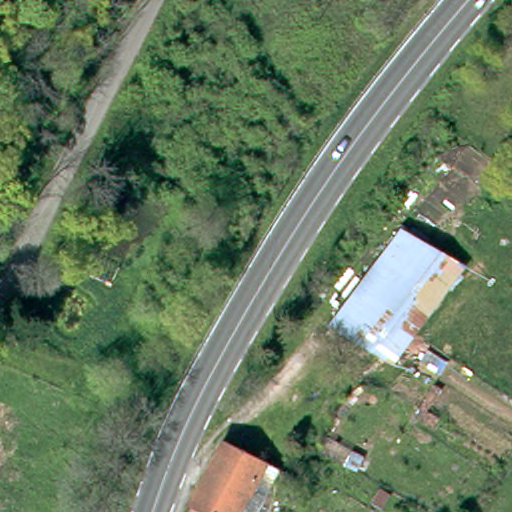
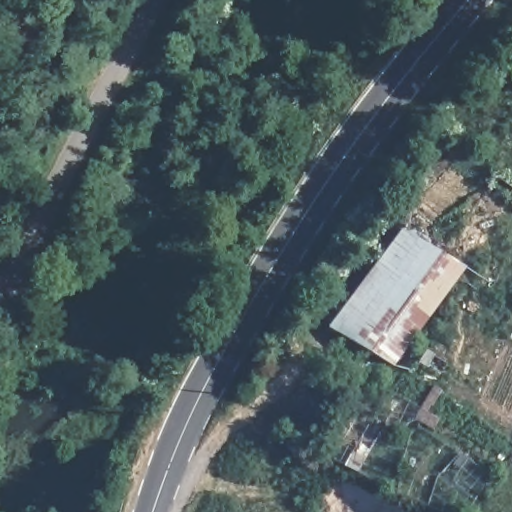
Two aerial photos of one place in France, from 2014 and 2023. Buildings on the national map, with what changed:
unchanged [(336,336),(392,233),(458,268),(402,373),(336,336)]
unchanged [(103,263),(128,276),(118,303),(88,292),(103,263)]
demolished [(271,476),(253,512),(201,512),(227,452),(271,476)]

